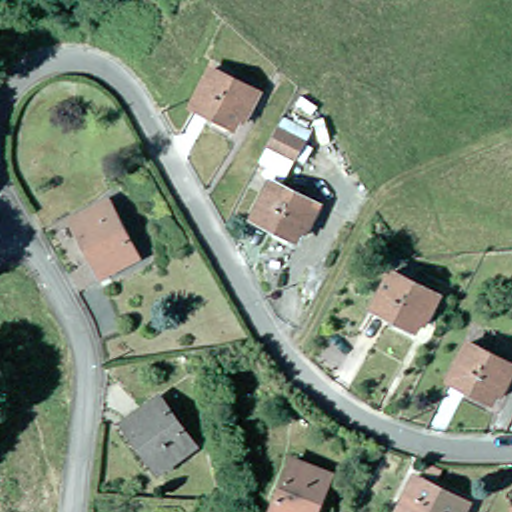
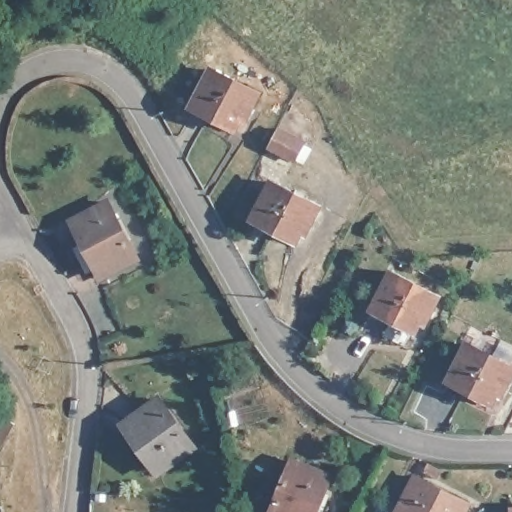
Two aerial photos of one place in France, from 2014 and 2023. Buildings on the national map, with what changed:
unchanged [(250,91),(237,117),(232,115),(227,125),(186,103),(204,67),(250,91)]
unchanged [(298,161),(270,147),(280,129),(307,142),(298,161)]
unchanged [(324,206),(309,235),(304,232),(300,242),(257,221),(277,183),(324,206)]
unchanged [(65,214),(100,196),(130,252),(96,270),(65,214)]
unchanged [(419,325),(414,322),(410,331),(367,311),(384,273),(432,296),(419,325)]
unchanged [(495,398),(490,396),(485,405),(444,385),(462,347),(508,370),(495,398)]
unchanged [(120,421),(155,396),(189,443),(152,468),(120,421)]
unchanged [(277,512),(270,510),(290,456),(327,470),(311,512),(277,512)]
unchanged [(396,512),(415,476),(468,503),(464,512),(396,512)]
unchanged [(512,509),(512,512),(509,512),(509,510),(512,509)]

